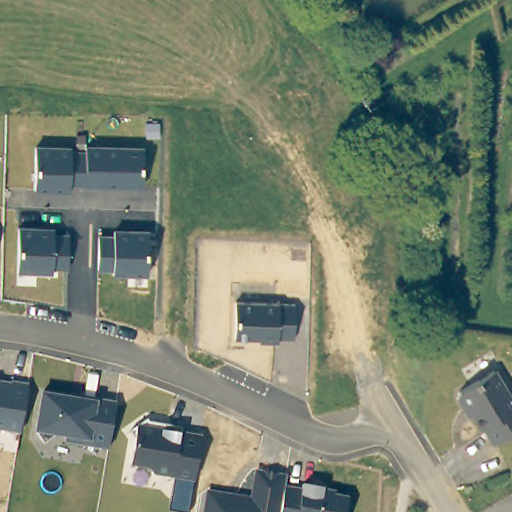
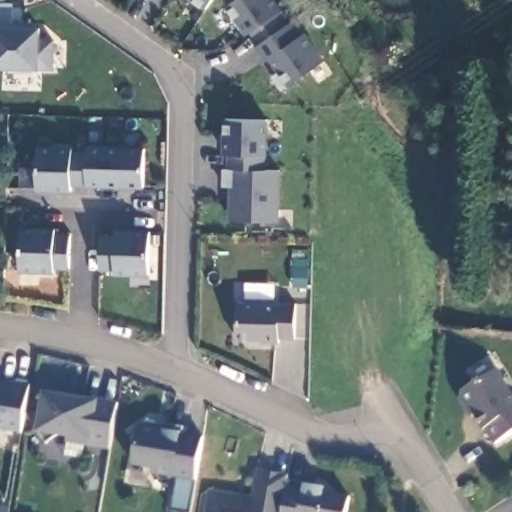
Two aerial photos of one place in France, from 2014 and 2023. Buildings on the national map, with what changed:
new [(190,0),(212,0),(205,10),(190,0)]
new [(265,62),(254,47),(258,43),(250,33),(246,35),(225,7),(234,0),(275,0),(324,59),(289,86),(269,58),(265,62)]
new [(12,3),(10,26),(40,27),(40,39),(54,40),(52,70),(38,70),(0,69),(0,3),(12,3)]
new [(224,117),(268,120),(265,170),(280,170),(278,221),(228,218),(231,168),(226,168),(227,152),(223,152),(224,117)]
unchanged [(143,187),(69,186),(69,192),(34,192),(33,147),(71,147),(72,151),(86,151),(86,146),(142,147),(143,187)]
unchanged [(52,227),(51,231),(68,231),(66,268),(52,268),(52,273),(18,273),(18,227),(52,227)]
unchanged [(114,235),(114,229),(151,230),(149,276),(113,276),(113,269),(97,268),(100,235),(114,235)]
unchanged [(296,339),(278,339),(277,343),(260,343),(260,339),(237,339),(237,303),(295,304),(296,339)]
unchanged [(29,385),(20,435),(0,431),(0,379),(29,385)]
unchanged [(512,441),(489,455),(479,439),(477,441),(464,420),(459,418),(453,408),(454,403),(489,382),(512,418),(512,441)]
unchanged [(97,400),(116,402),(108,450),(60,444),(64,437),(35,433),(43,391),(97,400)]
unchanged [(203,435),(187,512),(172,512),(169,511),(172,481),(156,478),(149,468),(130,466),(139,425),(203,435)]
unchanged [(251,499),(255,472),(285,475),(283,486),(278,512),(204,512),(207,491),(251,499)]
unchanged [(301,489),(301,482),(324,486),(325,493),(350,498),(348,512),(278,512),(283,486),(301,489)]

